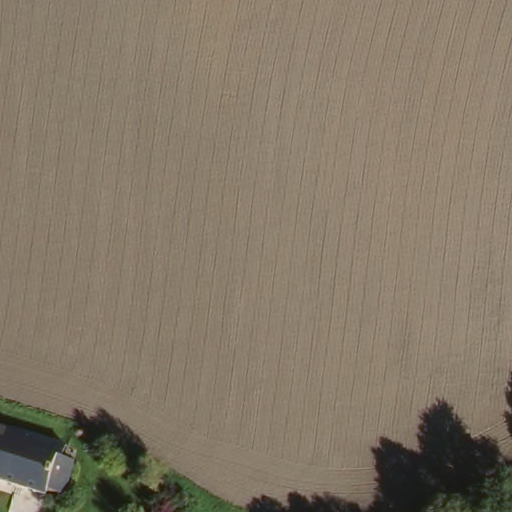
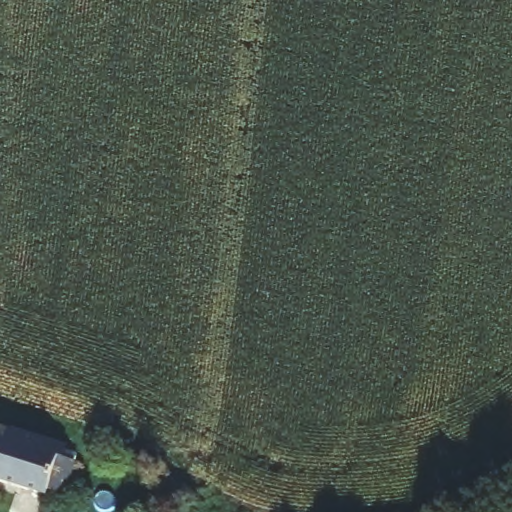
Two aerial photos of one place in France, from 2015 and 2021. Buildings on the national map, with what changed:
unchanged [(61,441),(57,457),(69,460),(59,493),(0,475),(0,422),(5,424),(6,423),(61,441)]

